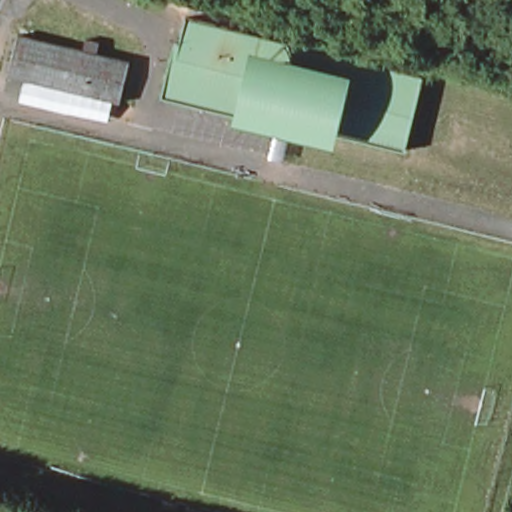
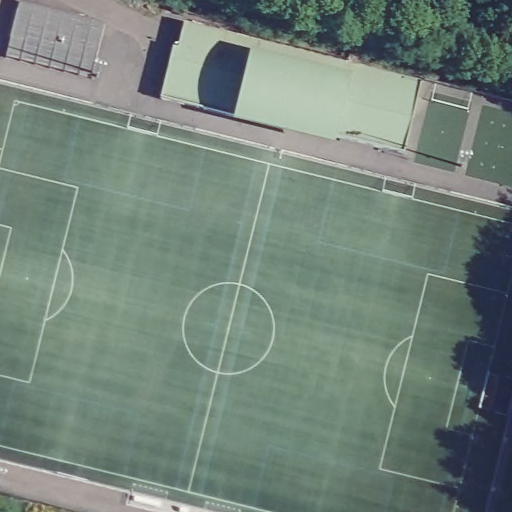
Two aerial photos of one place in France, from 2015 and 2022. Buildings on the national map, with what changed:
unchanged [(173,51),(178,52),(184,26),(422,85),(404,158),(243,118),(241,123),(160,103),(173,51)]
demolished [(6,71),(16,31),(81,47),(84,36),(98,40),(95,51),(128,59),(119,98),(6,71)]

